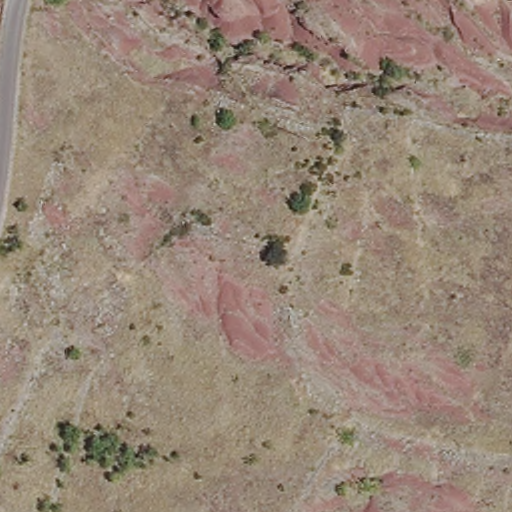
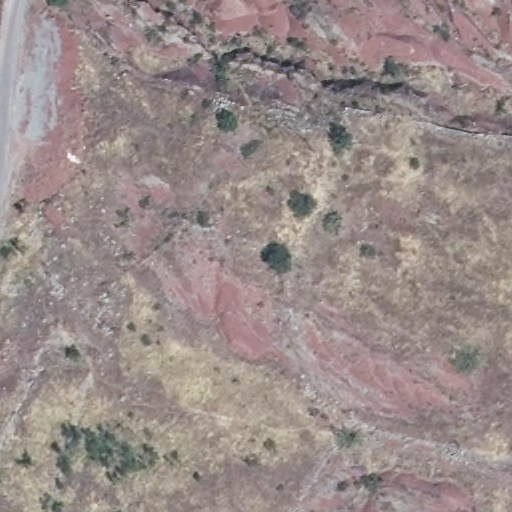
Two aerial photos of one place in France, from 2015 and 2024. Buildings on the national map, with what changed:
[]

